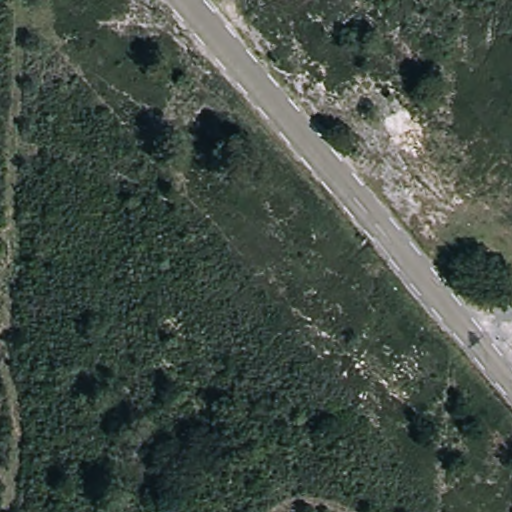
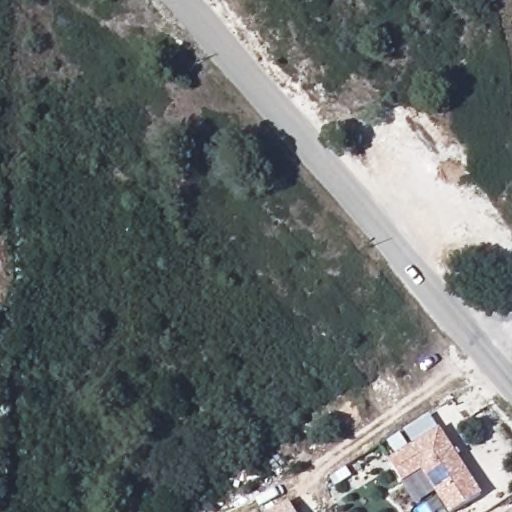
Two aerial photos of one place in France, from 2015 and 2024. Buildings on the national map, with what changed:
new [(404,484),(388,460),(412,446),(402,431),(428,414),(439,429),(439,428),(482,495),(455,512),(448,512),(437,494),(418,508),(402,486),(421,473),(404,484)]
new [(289,502),(295,512),(272,512),(289,502)]

